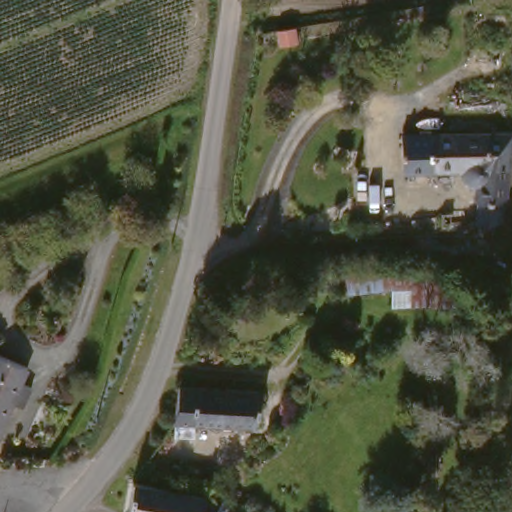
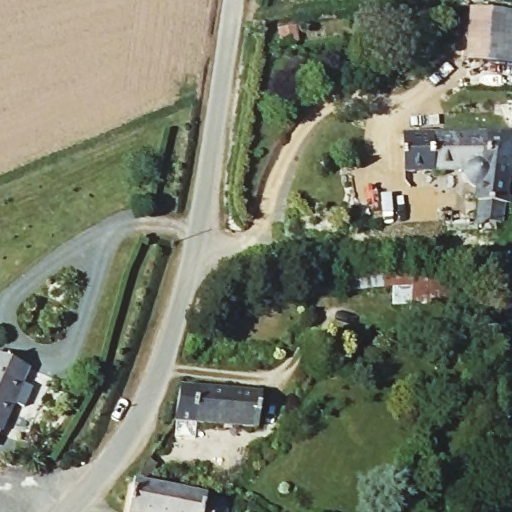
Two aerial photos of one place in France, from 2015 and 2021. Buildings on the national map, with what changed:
new [(469,8),(512,12),(512,64),(465,61),(469,8)]
demolished [(476,14),(511,13),(511,27),(502,28),(503,40),(479,41),(476,14)]
unchanged [(405,135),(493,133),(498,133),(512,133),(512,187),(510,204),(506,204),(503,222),(498,222),(499,229),(499,232),(496,232),(486,233),(485,223),(479,223),(481,203),(479,203),(481,187),(476,186),(474,184),(471,183),(469,179),(468,176),(464,170),(434,171),(435,172),(406,173),(405,135)]
unchanged [(391,300),(392,282),(344,287),(341,268),(358,267),(376,265),(391,265),(411,265),(411,299),(391,300)]
unchanged [(453,268),(459,300),(411,299),(411,265),(453,268)]
unchanged [(31,383),(38,384),(29,406),(19,403),(0,446),(0,348),(38,367),(31,383)]
unchanged [(174,421),(180,387),(216,389),(263,393),(259,427),(174,421)]
unchanged [(139,481),(226,499),(231,499),(231,501),(230,512),(132,512),(139,481)]

